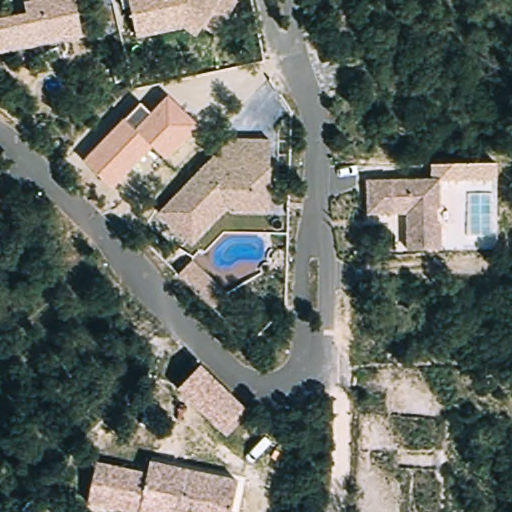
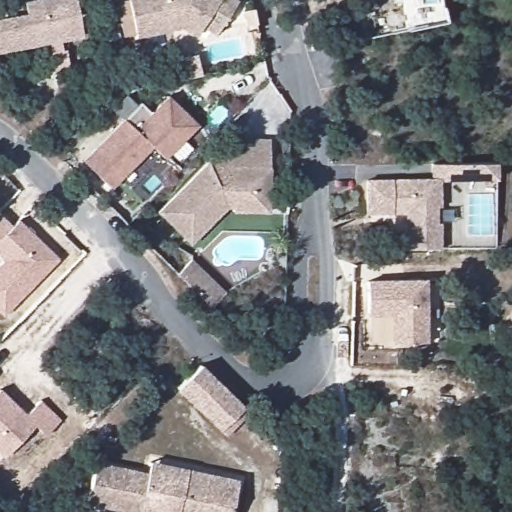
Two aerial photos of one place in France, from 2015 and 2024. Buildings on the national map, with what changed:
unchanged [(84,40),(0,55),(0,19),(28,14),(26,1),(31,0),(79,0),(84,40)]
unchanged [(187,26),(139,36),(130,0),(238,0),(239,0),(218,33),(203,26),(198,35),(187,26)]
unchanged [(141,105),(152,114),(168,98),(199,124),(167,158),(153,144),(112,187),(86,159),(124,119),(141,105)]
unchanged [(158,212),(229,138),(269,141),(267,169),(272,169),(272,197),(232,196),(227,201),(190,240),(158,212)]
unchanged [(432,162),(497,161),(497,177),(439,174),(431,174),(432,162)]
unchanged [(439,202),(436,202),(436,218),(440,218),(441,244),(407,245),(406,208),(367,209),(366,176),(439,174),(439,202)]
unchanged [(272,214),(237,213),(237,209),(230,209),(194,244),(190,240),(228,203),(227,201),(232,196),(272,197),(272,214)]
new [(0,262),(0,222),(11,232),(18,226),(57,265),(3,322),(0,320),(0,271),(5,266),(0,262)]
unchanged [(195,261),(230,295),(216,309),(181,276),(195,261)]
new [(425,282),(427,345),(394,346),(393,316),(367,316),(367,284),(425,282)]
unchanged [(248,410),(226,433),(182,391),(204,368),(248,410)]
new [(40,403),(61,423),(46,438),(35,428),(5,460),(0,456),(0,394),(26,418),(40,403)]
unchanged [(90,500),(98,461),(170,476),(172,464),(242,478),(237,503),(235,512),(145,512),(143,511),(90,500)]

